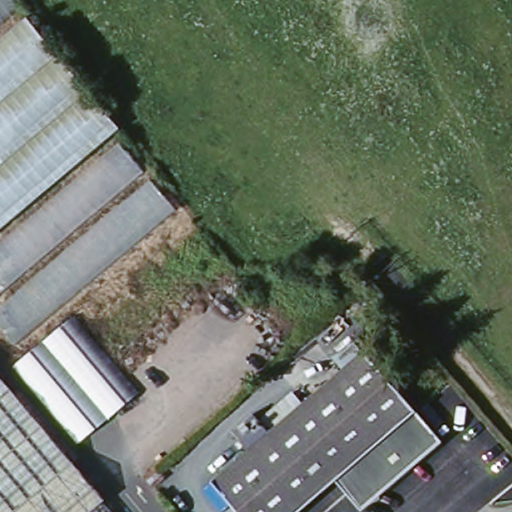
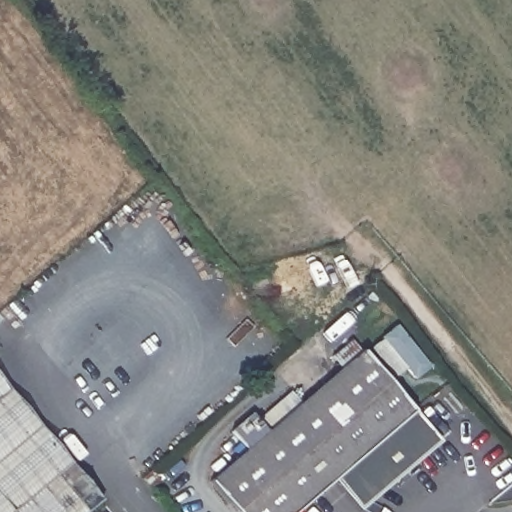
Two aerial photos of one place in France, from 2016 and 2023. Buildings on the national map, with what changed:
demolished [(0,37),(0,0),(15,0),(28,14),(0,37)]
demolished [(28,14),(118,126),(0,222),(0,37),(28,14)]
demolished [(120,145),(173,207),(14,344),(0,324),(0,248),(120,145)]
unchanged [(233,428),(254,410),(270,428),(344,365),(334,353),(353,337),(363,348),(365,348),(417,407),(440,433),(363,499),(340,472),(294,512),(241,512),(212,477),(249,446),(233,428)]
unchanged [(47,435),(0,474),(0,378),(47,435)]
unchanged [(97,498),(95,499),(102,510),(100,512),(0,512),(0,474),(47,435),(97,498)]

